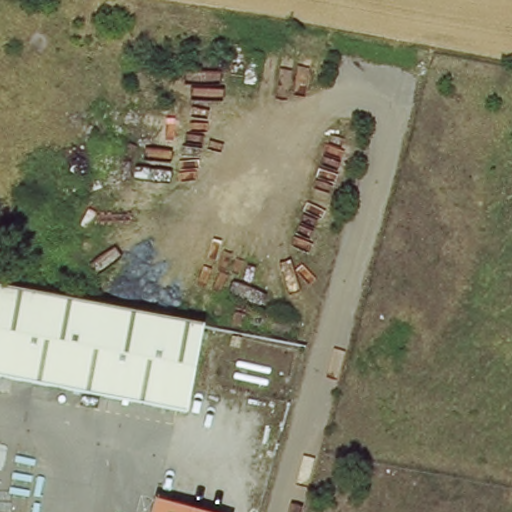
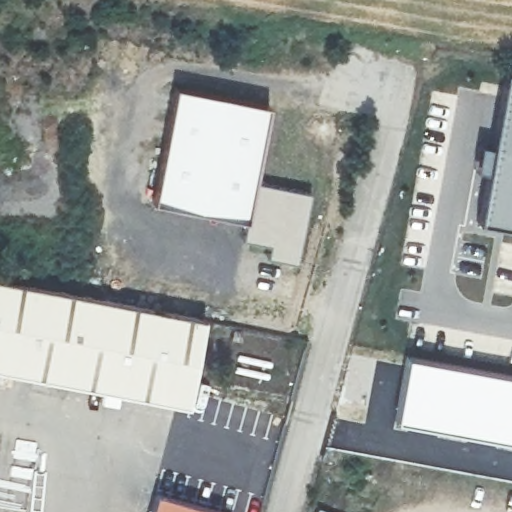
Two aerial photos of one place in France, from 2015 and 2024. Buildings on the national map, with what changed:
new [(512,233),(468,224),(494,72),(512,75),(512,233)]
new [(182,87),(267,103),(253,180),(246,214),(201,208),(160,199),(182,87)]
new [(246,214),(253,180),(310,190),(296,262),(267,257),(269,245),(242,239),(246,214)]
unchanged [(0,368),(0,278),(211,319),(195,405),(0,368)]
new [(512,374),(512,443),(395,421),(406,355),(512,374)]
unchanged [(158,512),(163,492),(229,512),(158,512)]

